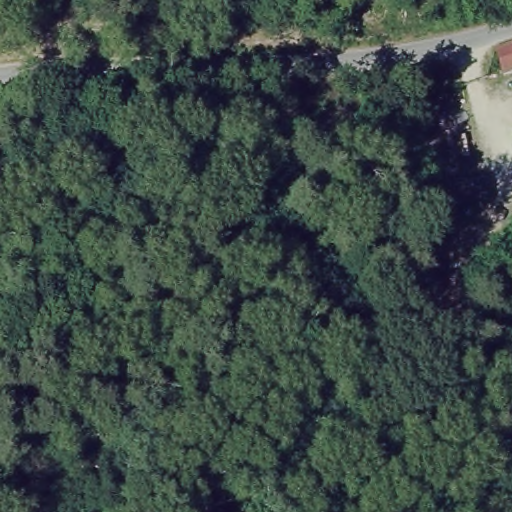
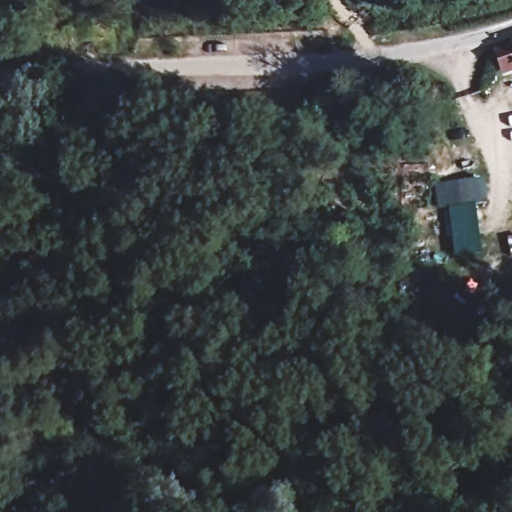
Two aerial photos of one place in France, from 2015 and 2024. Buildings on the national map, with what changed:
unchanged [(499,74),(492,51),(512,45),(512,70),(499,74)]
new [(484,254),(457,259),(448,209),(439,210),(435,186),(485,178),(489,202),(475,204),(484,254)]

